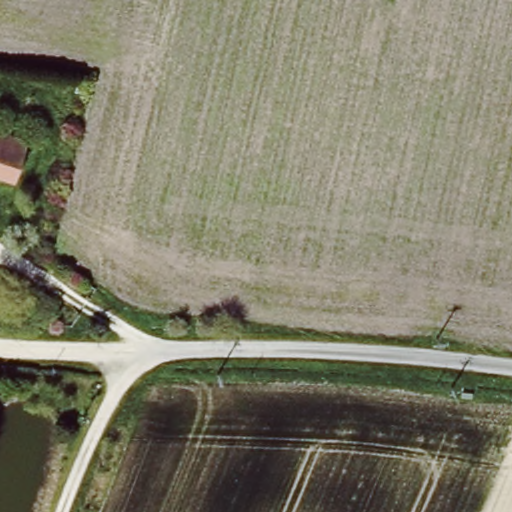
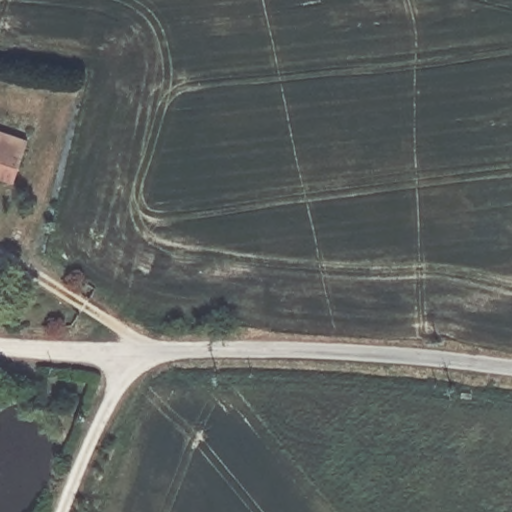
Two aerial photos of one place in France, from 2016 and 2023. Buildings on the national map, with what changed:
unchanged [(11,174),(0,170),(0,127),(24,135),(11,174)]

